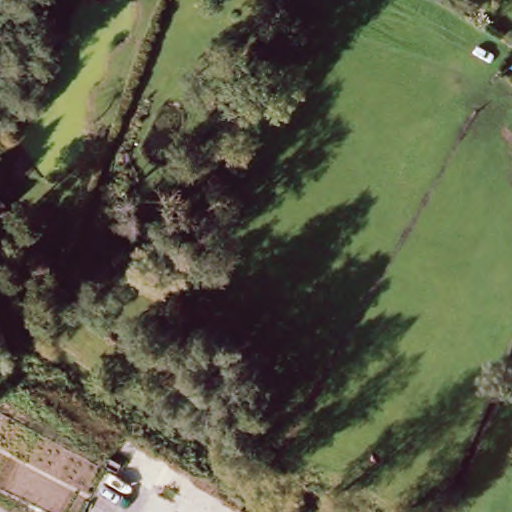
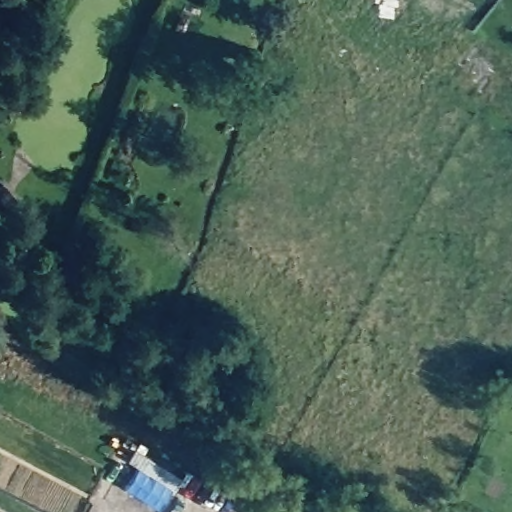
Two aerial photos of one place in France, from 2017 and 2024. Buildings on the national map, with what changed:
[]

